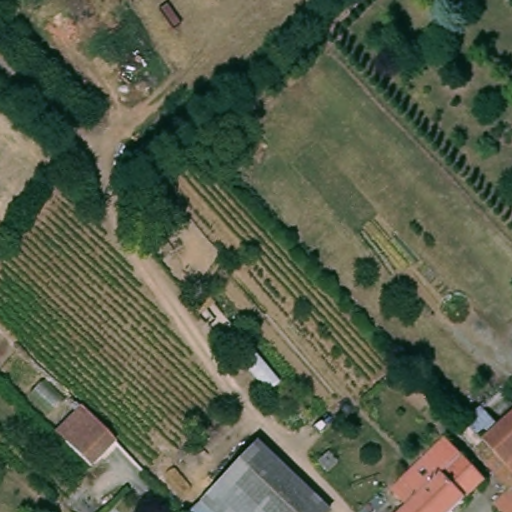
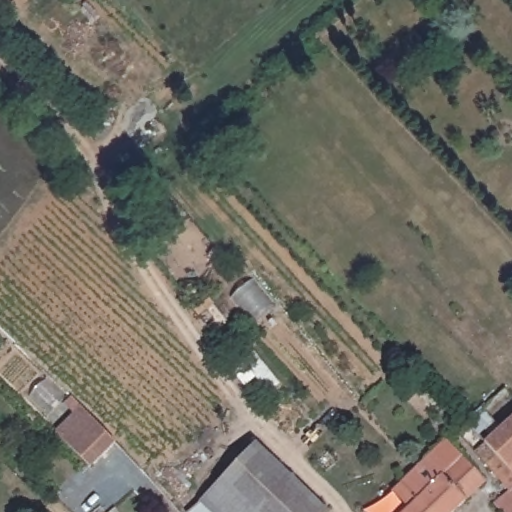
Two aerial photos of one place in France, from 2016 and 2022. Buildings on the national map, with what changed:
unchanged [(512,410),(512,466),(495,448),(494,448),(483,436),(503,418),(512,410)]
unchanged [(97,423),(110,437),(85,462),(61,436),(86,412),(97,423)]
unchanged [(417,498),(401,481),(445,439),(484,481),(451,512),(403,512),(417,498)]
unchanged [(329,509),(327,512),(187,512),(256,442),(329,509)]
unchanged [(497,494),(508,484),(486,458),(485,457),(494,448),(495,448),(512,466),(512,512),(506,512),(493,498),(495,496),(497,494)]

